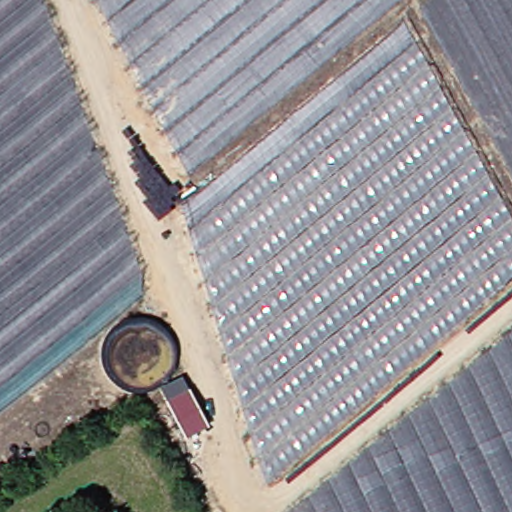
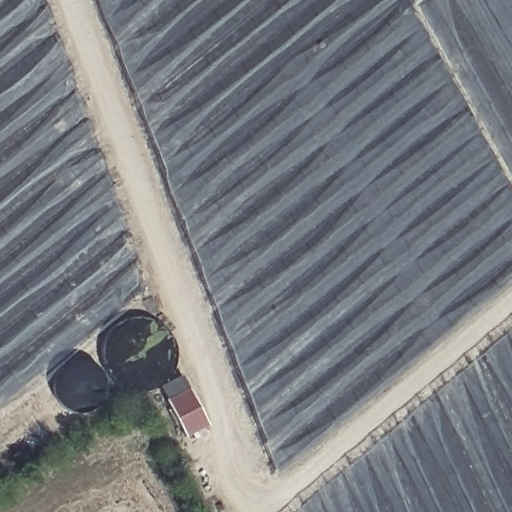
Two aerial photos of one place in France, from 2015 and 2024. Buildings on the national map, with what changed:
unchanged [(48,0),(149,278),(0,398),(0,0),(48,0)]
demolished [(110,0),(395,0),(186,167),(110,0)]
unchanged [(512,0),(512,161),(427,0),(512,0)]
demolished [(512,211),(512,284),(271,481),(182,205),(405,19),(512,211)]
demolished [(512,512),(283,512),(512,326),(512,512)]
unchanged [(211,426),(185,440),(165,398),(191,385),(211,426)]

